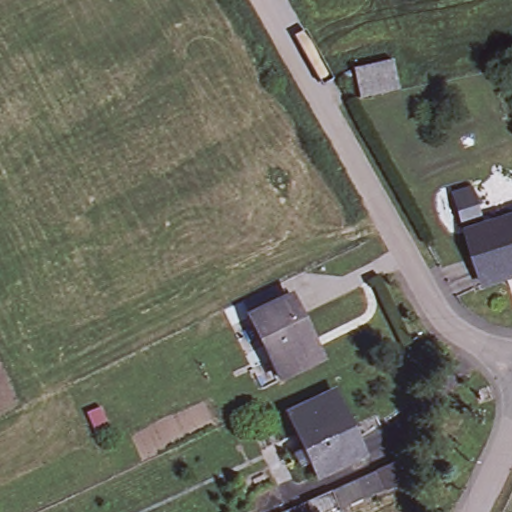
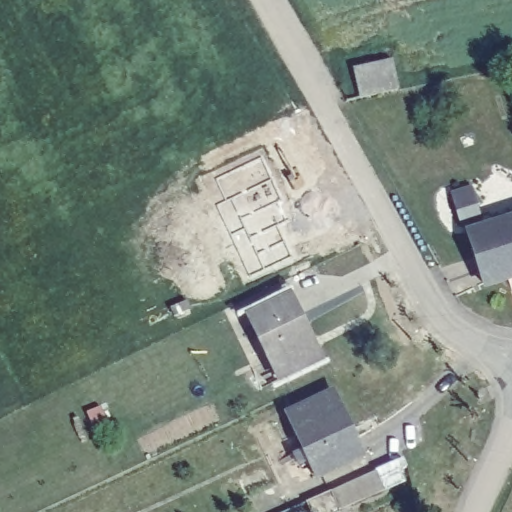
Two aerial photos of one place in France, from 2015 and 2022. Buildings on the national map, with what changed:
unchanged [(353,70),(392,62),(398,89),(359,98),(353,70)]
unchanged [(467,229),(512,216),(512,273),(483,282),(467,229)]
unchanged [(289,297),(317,359),(276,379),(248,317),(289,297)]
unchanged [(337,393),(367,457),(323,478),(315,464),(307,467),(300,454),(309,450),(292,415),(337,393)]
unchanged [(336,492),(381,472),(410,459),(414,473),(406,476),(409,484),(391,492),(389,489),(344,510),(340,512),(313,512),(310,503),(336,492)]

